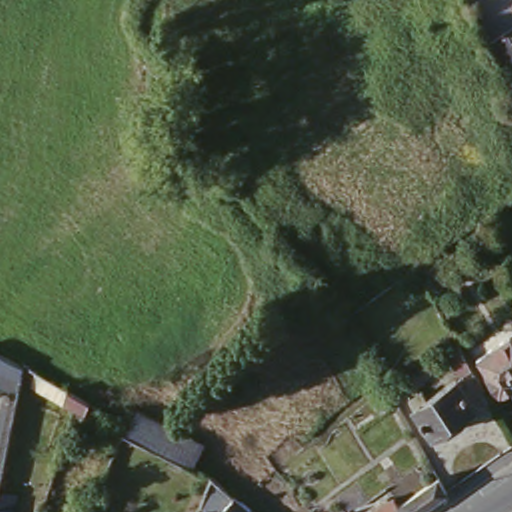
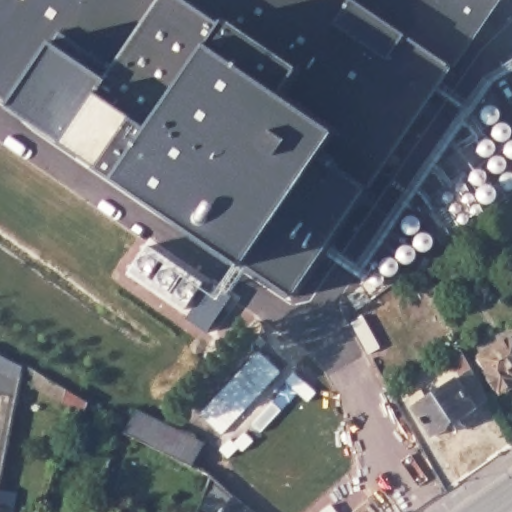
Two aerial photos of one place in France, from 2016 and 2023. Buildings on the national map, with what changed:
new [(249,0),(501,0),(455,66),(375,183),(298,295),(255,263),(129,180),(16,103),(0,91),(0,0),(203,0),(235,21),(249,0)]
new [(156,242),(212,279),(193,308),(138,271),(156,242)]
unchanged [(510,336),(512,339),(512,383),(500,391),(487,371),(489,370),(481,357),(510,336)]
unchanged [(20,374),(0,365),(0,349),(23,361),(20,374)]
unchanged [(411,396),(416,403),(448,381),(437,360),(449,352),(478,404),(425,440),(405,411),(400,403),(411,396)]
unchanged [(81,411),(71,405),(60,399),(65,384),(76,390),(86,397),(81,411)]
unchanged [(121,430),(124,425),(135,408),(163,422),(203,441),(201,444),(191,466),(121,430)]
unchanged [(130,437),(127,443),(120,439),(122,434),(130,437)]
demolished [(404,493),(408,499),(441,476),(449,490),(417,512),(376,512),(404,493)]
unchanged [(0,486),(16,488),(13,504),(11,512),(0,512),(0,486)]
unchanged [(233,493),(237,497),(254,512),(219,512),(233,493)]

